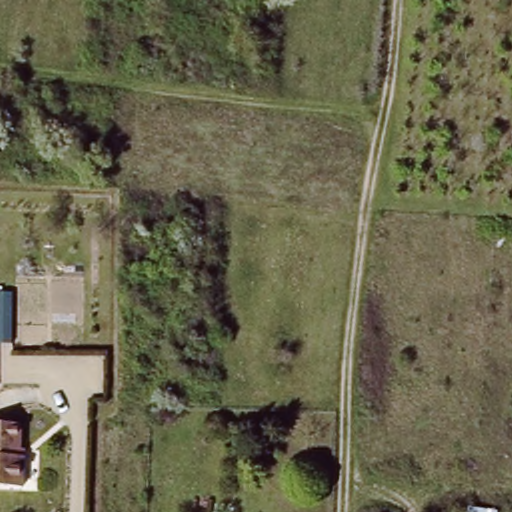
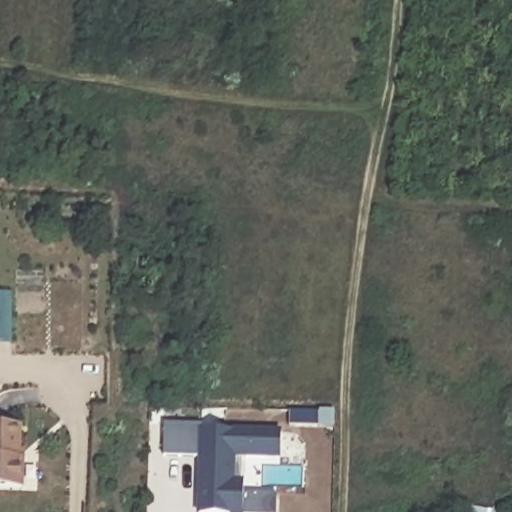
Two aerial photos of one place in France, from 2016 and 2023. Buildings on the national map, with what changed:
new [(165,424),(202,425),(202,430),(282,432),(282,457),(234,456),(233,482),(245,482),(244,494),(277,495),(277,512),(200,512),(202,457),(164,456),(165,424)]
unchanged [(19,461),(23,462),(22,490),(0,489),(0,427),(20,427),(19,461)]
unchanged [(495,504),(495,512),(463,512),(464,509),(495,504)]

